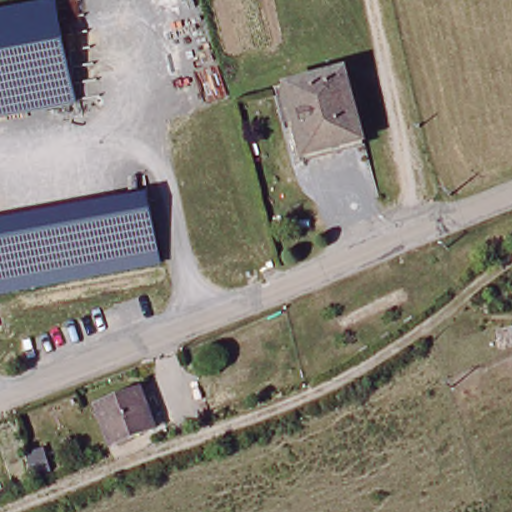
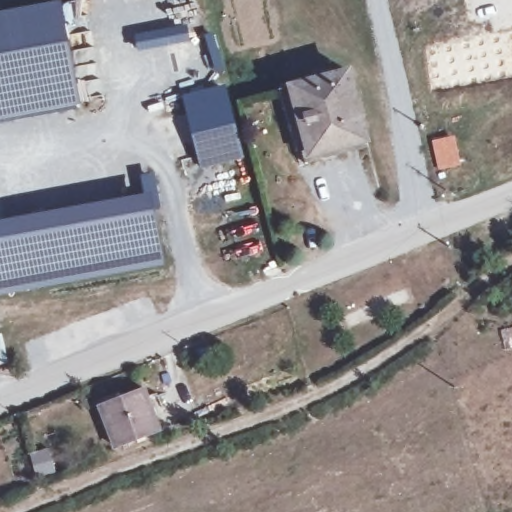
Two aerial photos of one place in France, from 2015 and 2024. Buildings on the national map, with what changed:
unchanged [(64,4),(79,101),(0,114),(0,15),(64,4)]
unchanged [(350,71),(364,137),(297,155),(290,122),(301,118),(293,84),(350,71)]
new [(202,169),(183,97),(227,86),(245,159),(202,169)]
unchanged [(167,267),(0,297),(0,220),(152,194),(167,267)]
unchanged [(138,387),(155,422),(117,441),(100,404),(138,387)]

